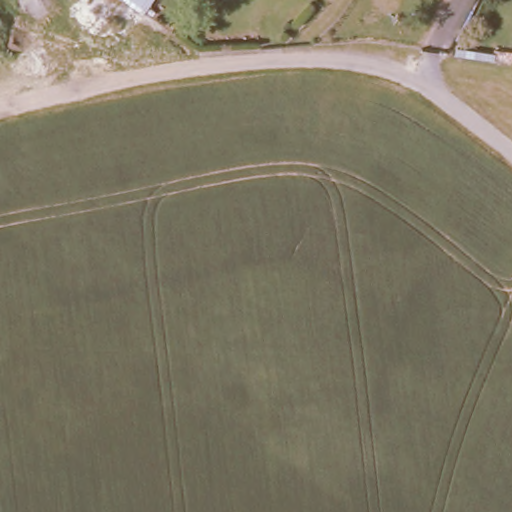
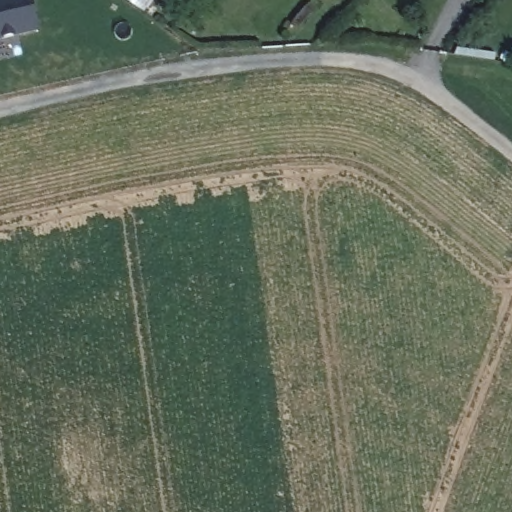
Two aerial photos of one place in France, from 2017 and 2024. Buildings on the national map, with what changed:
new [(38,32),(0,41),(0,0),(30,0),(38,32)]
unchanged [(143,14),(122,0),(153,0),(143,14)]

